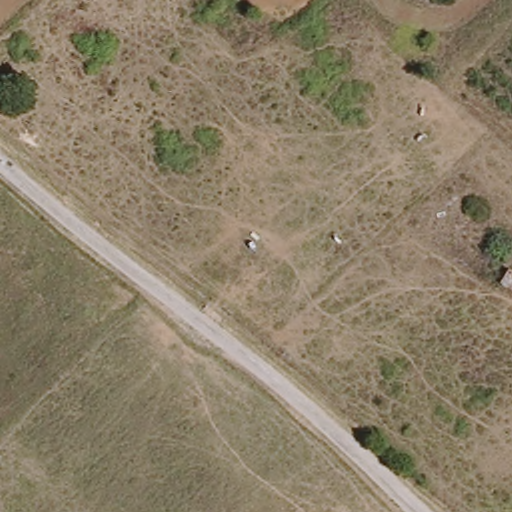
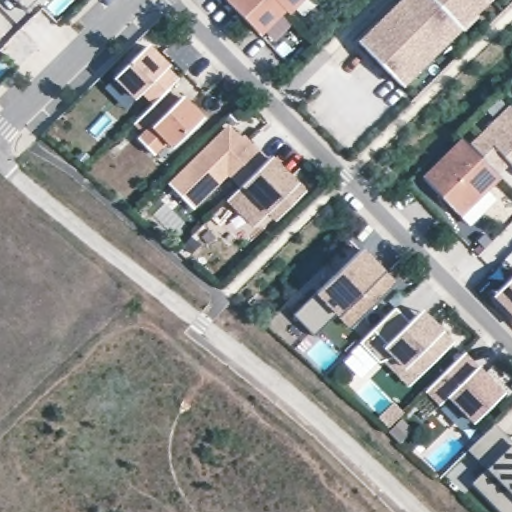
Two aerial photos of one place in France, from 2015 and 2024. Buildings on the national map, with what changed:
new [(13,3),(10,0),(16,0),(13,3)]
new [(285,15),(280,9),(254,37),(220,3),(223,0),(299,0),(285,15)]
new [(405,89),(358,41),(399,0),(493,0),(405,89)]
new [(165,65),(156,74),(181,97),(202,117),(168,153),(163,147),(153,158),(135,140),(141,132),(131,121),(150,103),(140,94),(131,102),(108,80),(145,45),(165,65)]
new [(512,107),(512,164),(511,162),(501,174),(470,142),(509,104),(512,107)]
new [(240,141),(245,136),(270,159),(295,185),(301,195),(271,224),(265,214),(251,230),(223,201),(236,189),(225,177),(191,214),(165,186),(224,126),(240,141)]
new [(500,179),(459,221),(419,177),(458,140),(500,179)]
demolished [(326,175),(337,186),(323,197),(314,189),(326,175)]
new [(386,270),(398,283),(349,331),(340,317),(336,313),(315,335),(294,314),(316,293),(311,288),(356,246),(386,270)]
new [(491,297),(512,277),(512,318),(491,297)]
new [(403,326),(419,311),(440,331),(451,342),(405,388),(359,342),(390,312),(403,326)]
new [(478,365),(504,392),(473,422),(465,432),(452,420),(461,410),(448,396),(441,406),(424,391),(465,353),(478,365)]
new [(512,446),(512,501),(502,512),(500,512),(472,482),(490,465),(469,444),(489,426),(503,436),(512,446)]

